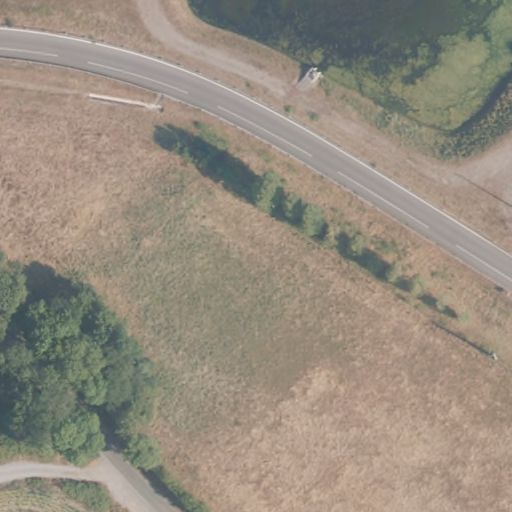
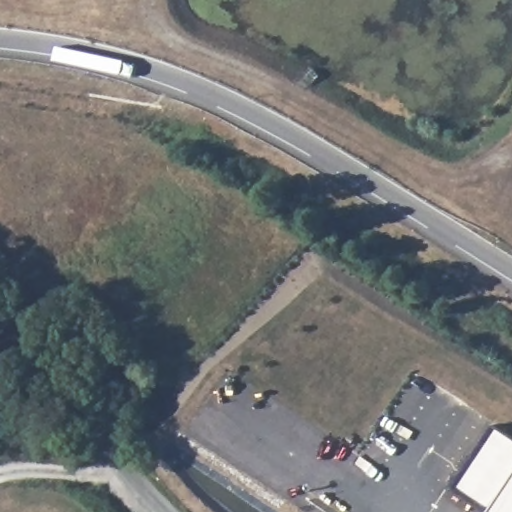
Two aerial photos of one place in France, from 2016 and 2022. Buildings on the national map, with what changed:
new [(451,486),(494,425),(512,437),(512,512),(485,512),(451,486)]

